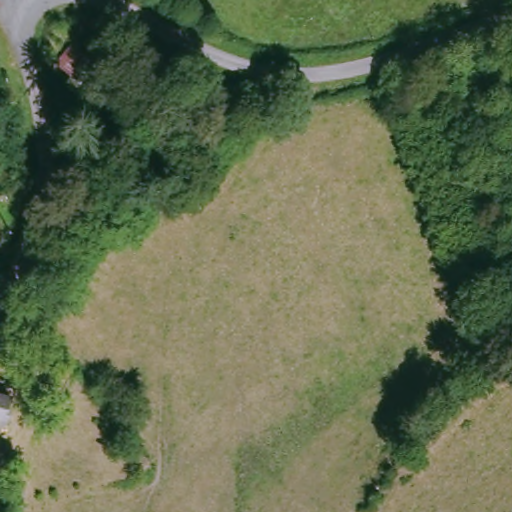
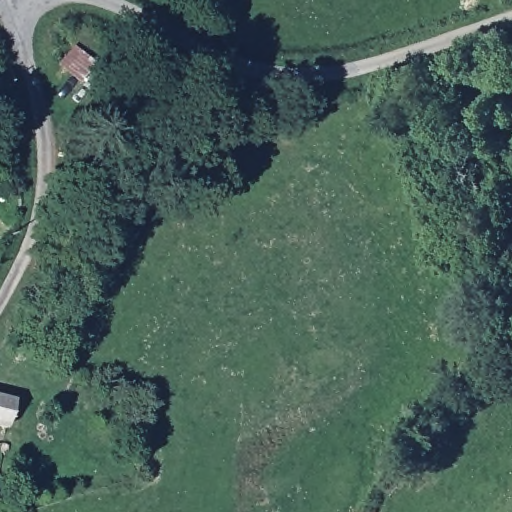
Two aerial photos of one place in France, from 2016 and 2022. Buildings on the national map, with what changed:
unchanged [(15,426),(0,422),(0,390),(23,396),(15,426)]

